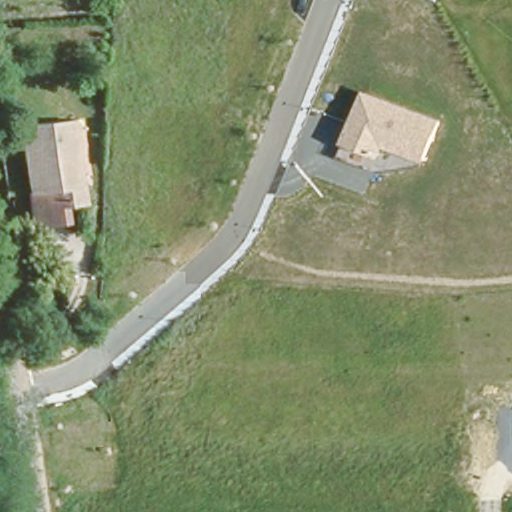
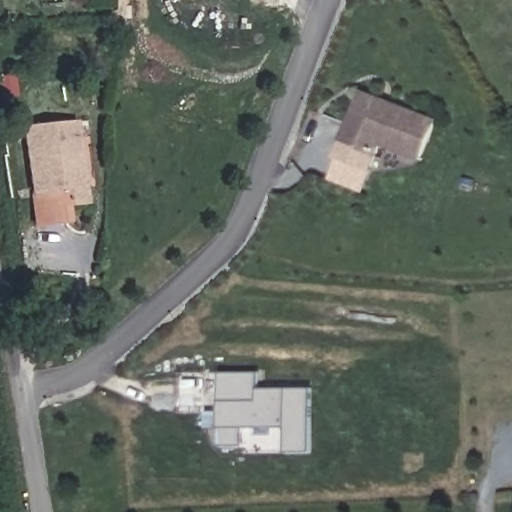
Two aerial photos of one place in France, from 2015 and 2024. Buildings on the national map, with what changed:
unchanged [(424,163),(384,149),(381,160),(345,145),(339,142),(361,91),(442,121),(424,163)]
unchanged [(50,199),(50,205),(31,206),(28,118),(77,117),(78,183),(78,199),(50,199)]
new [(312,453),(286,453),(286,427),(244,428),(244,447),(219,446),(218,374),(259,373),(259,390),(310,388),(312,453)]

